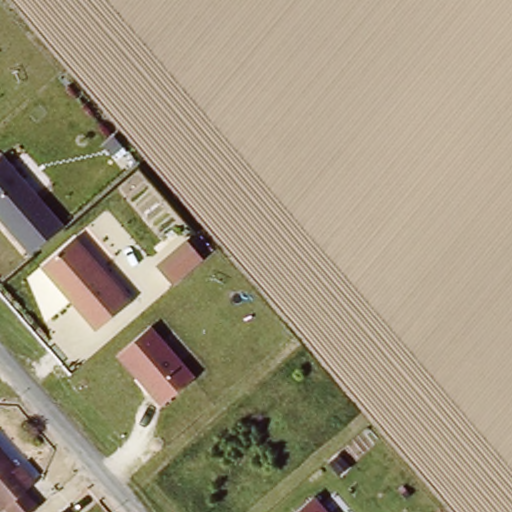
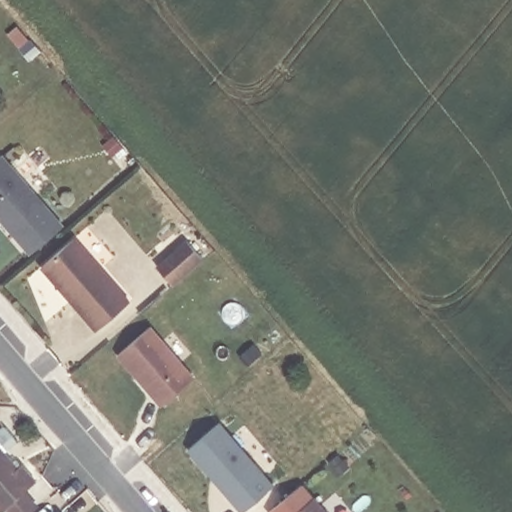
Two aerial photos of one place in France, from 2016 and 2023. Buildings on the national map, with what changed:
unchanged [(0,220),(0,159),(2,157),(61,225),(30,254),(0,220)]
unchanged [(42,266),(74,240),(129,301),(98,330),(42,266)]
unchanged [(196,376),(160,407),(114,354),(150,324),(196,376)]
new [(244,512),(238,512),(186,452),(220,422),(274,484),(244,512)]
unchanged [(17,469),(24,464),(36,483),(1,512),(0,512),(0,448),(17,469)]
unchanged [(313,497),(326,512),(296,512),(313,497)]

